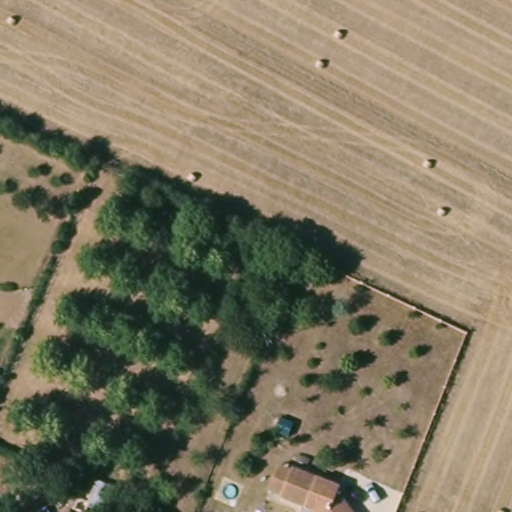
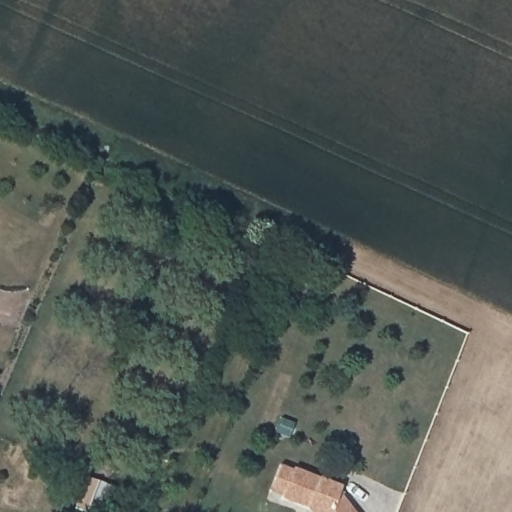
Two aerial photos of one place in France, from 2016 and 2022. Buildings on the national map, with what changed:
unchanged [(274,497),(275,495),(263,490),(273,463),(286,469),(287,467),(334,486),(332,492),(348,512),(304,512),(300,507),(274,497)]
unchanged [(100,482),(88,512),(73,512),(88,477),(100,482)]

